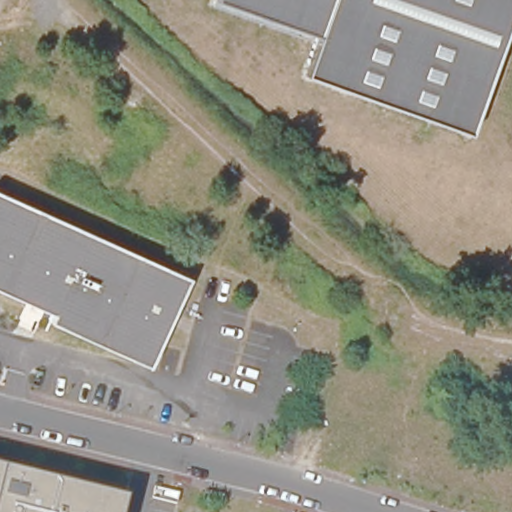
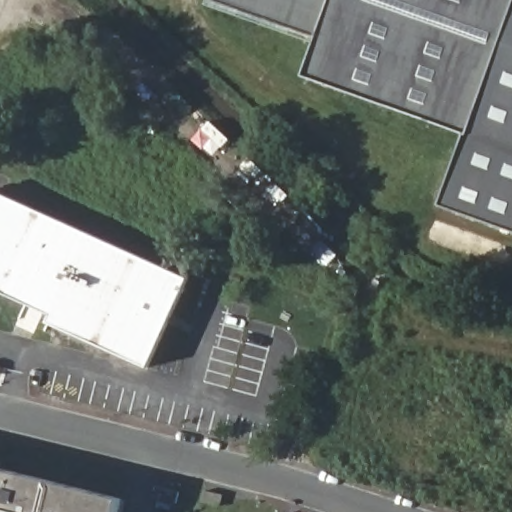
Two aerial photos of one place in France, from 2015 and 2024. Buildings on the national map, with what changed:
unchanged [(302,75),(314,39),(205,4),(207,0),(512,0),(512,4),(467,134),(302,75)]
new [(467,134),(512,4),(512,231),(441,206),(467,134)]
unchanged [(188,283),(146,371),(47,324),(50,317),(0,294),(0,195),(188,283)]
unchanged [(0,512),(0,469),(122,499),(119,512),(0,512)]

